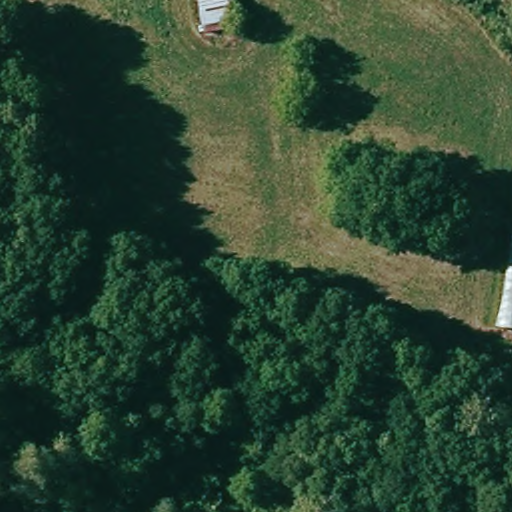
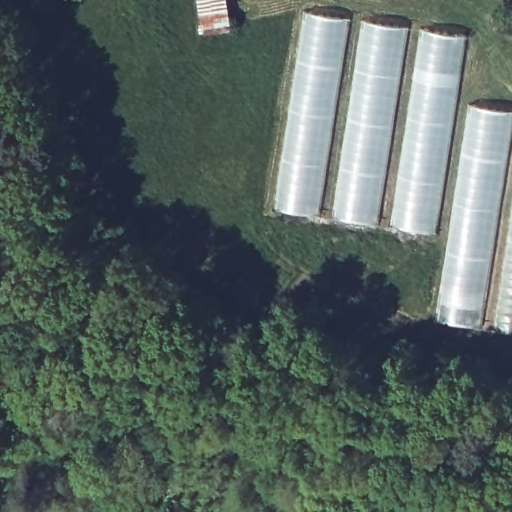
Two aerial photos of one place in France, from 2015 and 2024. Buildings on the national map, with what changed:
unchanged [(224,0),(229,31),(202,38),(197,0),(224,0)]
new [(305,13),(465,38),(435,233),(276,208),(305,13)]
unchanged [(494,311),(441,302),(471,106),(512,112),(512,333),(495,331),(494,311)]

